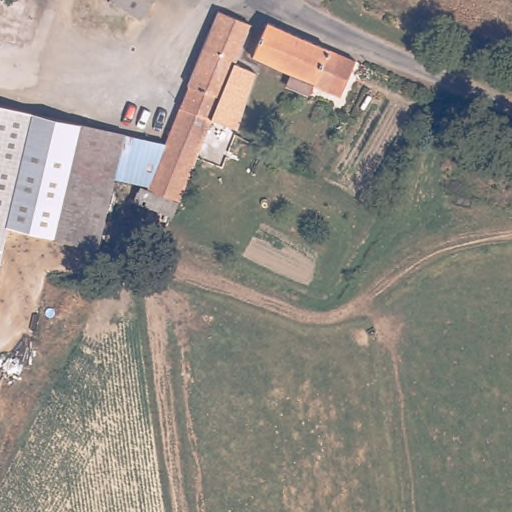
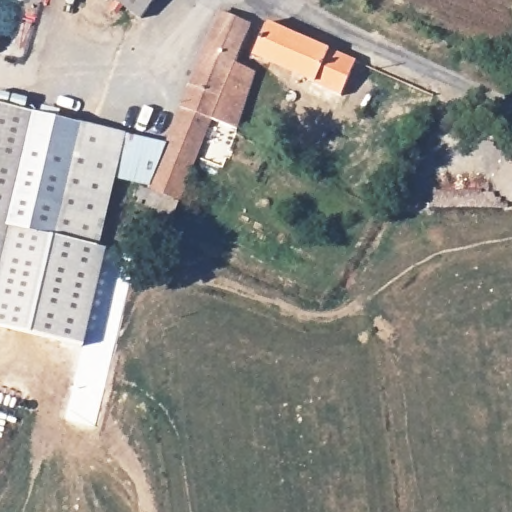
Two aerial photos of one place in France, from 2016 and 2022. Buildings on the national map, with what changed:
unchanged [(121,0),(145,0),(137,11),(121,0)]
unchanged [(314,0),(327,0),(325,6),(314,0)]
unchanged [(174,151),(231,15),(262,28),(249,59),(250,59),(247,66),(261,72),(246,121),(242,119),(229,113),(225,122),(194,195),(161,181),(174,151)]
unchanged [(270,22),(276,23),(342,50),(358,56),(344,91),(316,80),(312,90),(288,81),(293,71),(260,58),(254,55),(270,22)]
unchanged [(42,241),(10,232),(0,229),(0,102),(75,122),(42,241)]
unchanged [(110,182),(91,253),(42,241),(75,122),(122,137),(110,182)]
unchanged [(132,139),(174,151),(161,181),(157,194),(144,191),(110,182),(122,137),(132,139)]
unchanged [(0,229),(1,229),(10,232),(0,276),(0,229)]
new [(42,241),(91,253),(92,245),(107,248),(84,347),(0,328),(0,275),(10,232),(42,241)]

